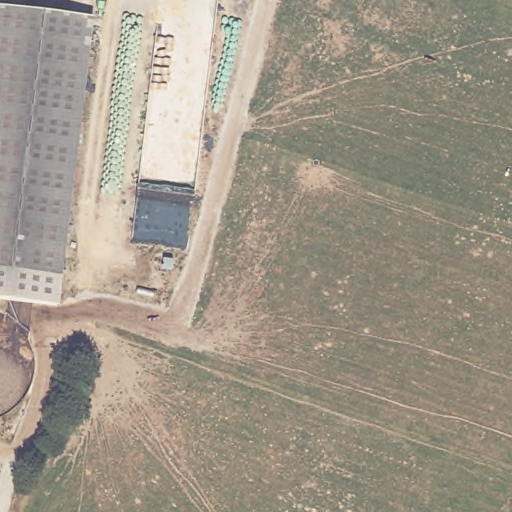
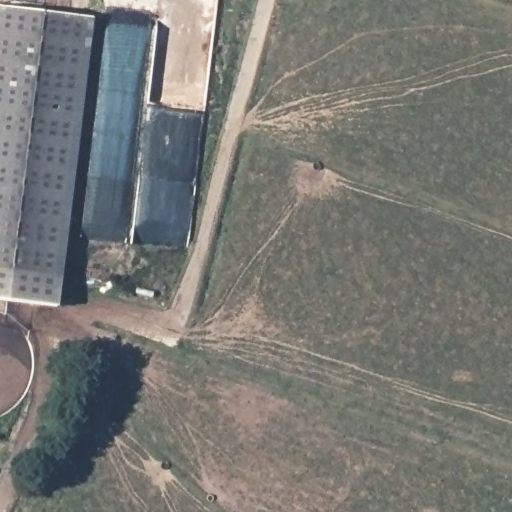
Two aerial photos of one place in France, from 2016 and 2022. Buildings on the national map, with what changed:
unchanged [(54,274),(0,267),(0,16),(86,26),(54,274)]

